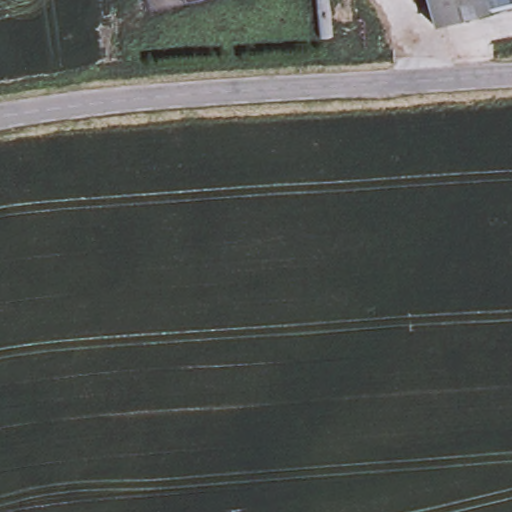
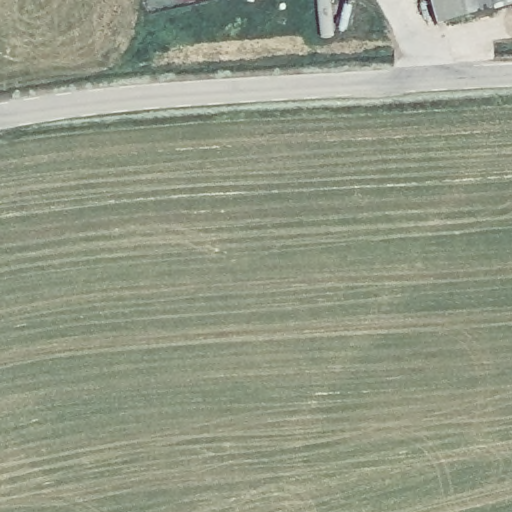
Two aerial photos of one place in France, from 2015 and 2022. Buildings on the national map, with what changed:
unchanged [(426,0),(512,0),(512,6),(433,27),(426,0)]

